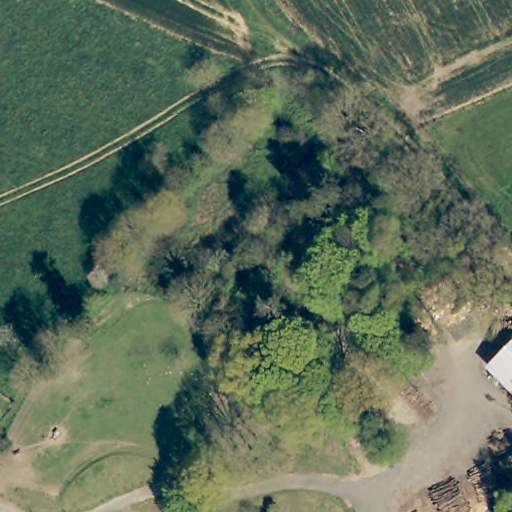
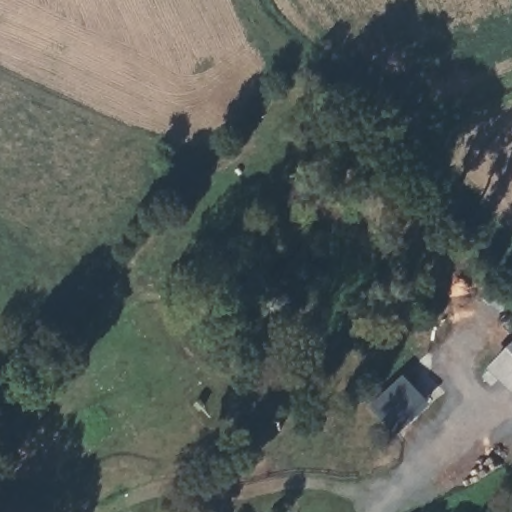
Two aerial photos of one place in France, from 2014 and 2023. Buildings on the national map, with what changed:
unchanged [(512,344),(512,395),(486,370),(512,344)]
new [(430,405),(397,434),(370,406),(401,375),(430,405)]

